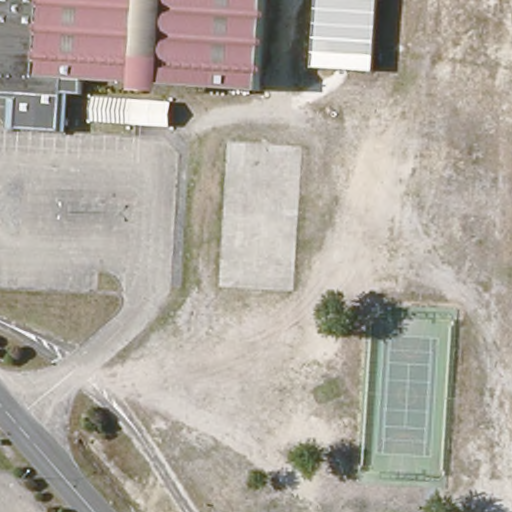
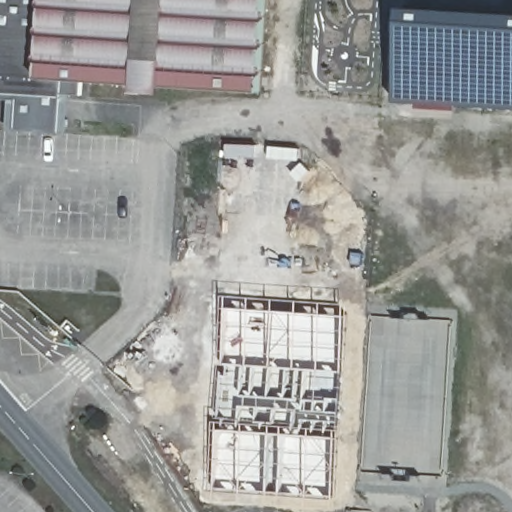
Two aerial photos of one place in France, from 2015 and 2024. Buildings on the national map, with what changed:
unchanged [(62,78),(61,88),(0,85),(0,0),(267,0),(261,90),(62,78)]
new [(404,8),(512,15),(512,107),(398,100),(404,8)]
demolished [(308,21),(337,23),(333,97),(304,94),(308,21)]
unchanged [(82,95),(69,94),(66,132),(11,129),(14,85),(61,88),(62,78),(83,79),(82,95)]
new [(349,372),(343,430),(339,508),(214,502),(216,420),(220,420),(225,362),(226,294),(352,302),(349,372)]

